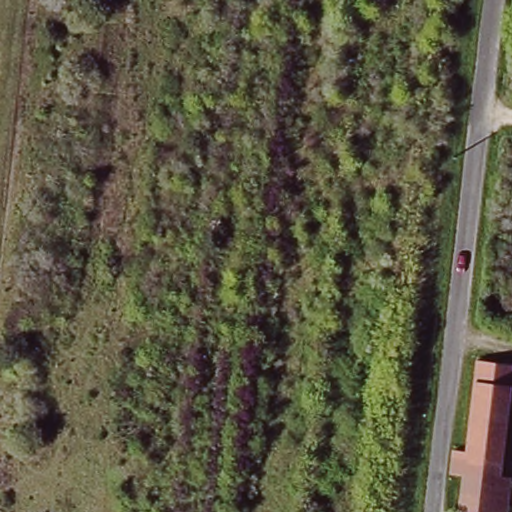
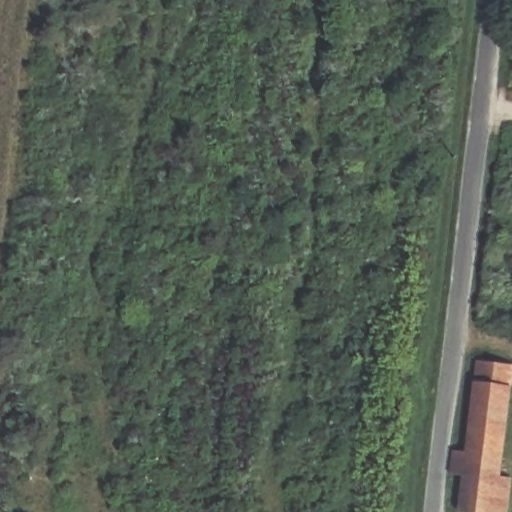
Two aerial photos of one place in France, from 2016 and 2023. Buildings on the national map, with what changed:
unchanged [(496,472),(510,478),(507,512),(448,512),(452,476),(442,473),(450,439),(458,440),(465,363),(510,370),(496,472)]

